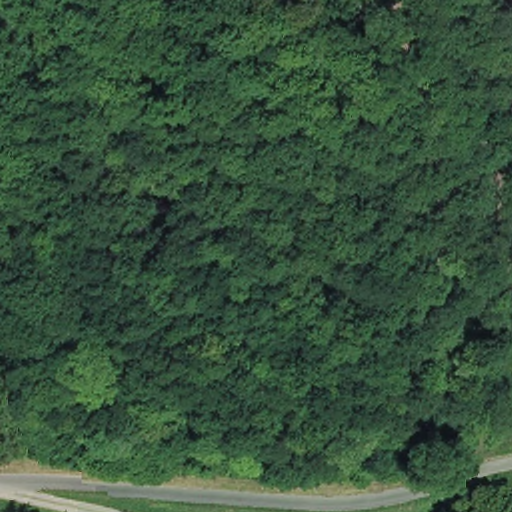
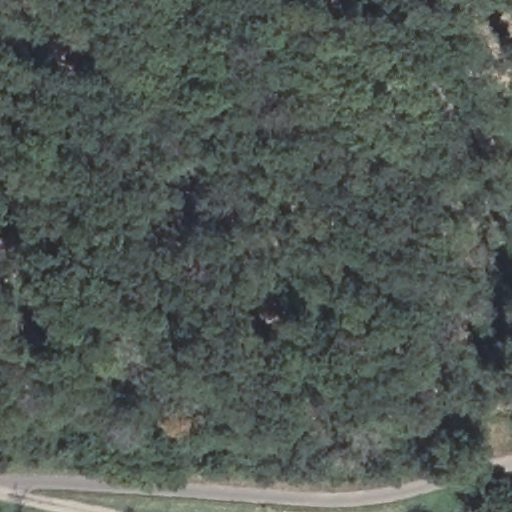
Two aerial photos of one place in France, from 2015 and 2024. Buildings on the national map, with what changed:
[]

